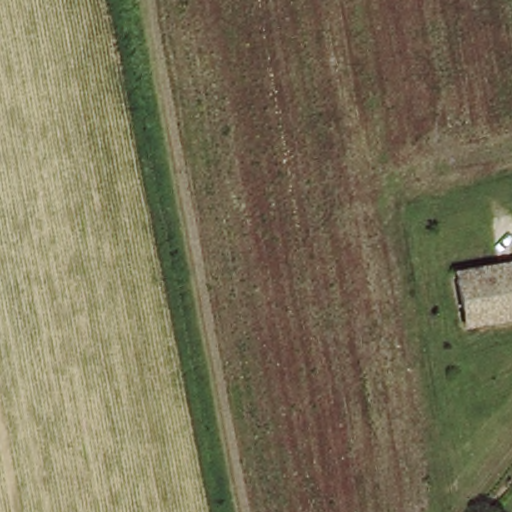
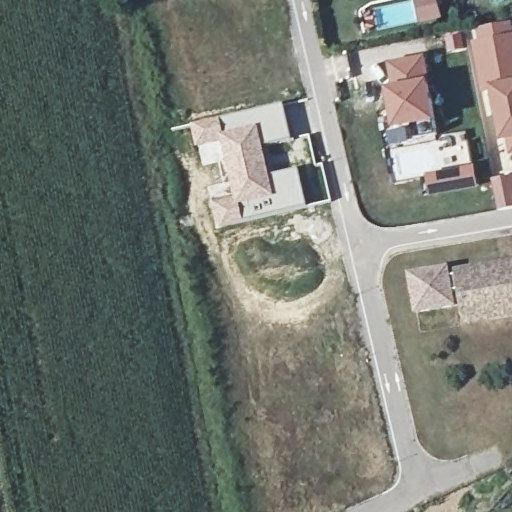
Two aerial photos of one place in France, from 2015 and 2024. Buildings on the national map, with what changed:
new [(512,26),(512,143),(489,147),(469,30),(512,26)]
new [(427,57),(430,83),(437,122),(438,136),(419,140),(417,127),(396,132),(389,89),(395,87),(390,64),(427,57)]
new [(284,104),(293,140),(264,147),(259,124),(222,132),(219,117),(284,104)]
new [(219,117),(222,132),(222,162),(202,166),(190,124),(219,117)]
new [(259,124),(264,147),(270,175),(300,168),(309,207),(242,223),(229,180),(226,181),(222,162),(222,132),(259,124)]
new [(450,167),(476,164),(480,187),(432,196),(427,174),(450,167)]
new [(226,181),(229,180),(242,223),(216,229),(207,186),(226,181)]
unchanged [(467,316),(460,280),(501,272),(512,270),(512,323),(497,326),(470,331),(467,316)]

